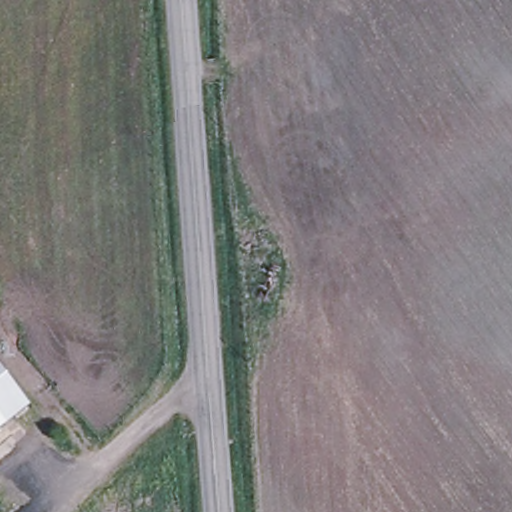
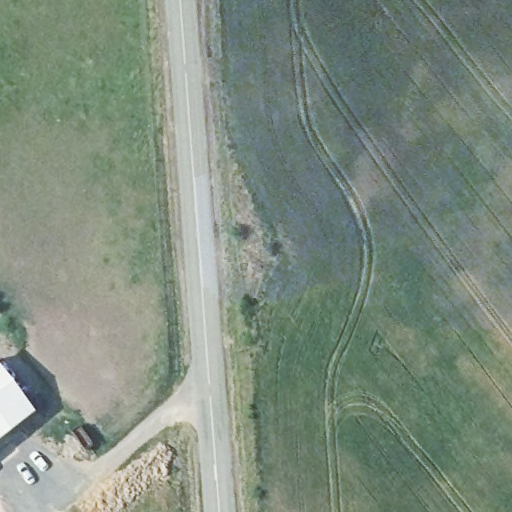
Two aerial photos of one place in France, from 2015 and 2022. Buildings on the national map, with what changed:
unchanged [(34,413),(0,441),(0,369),(34,413)]

